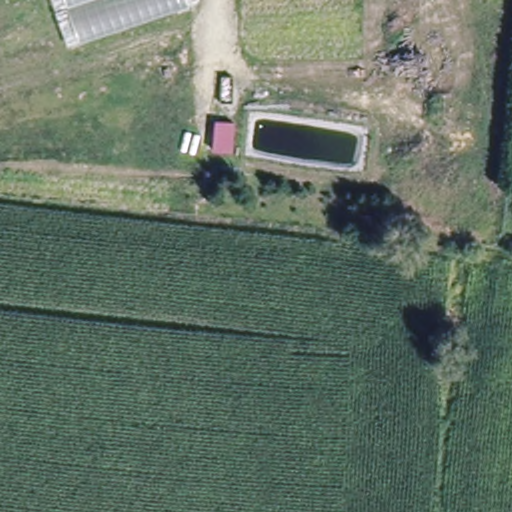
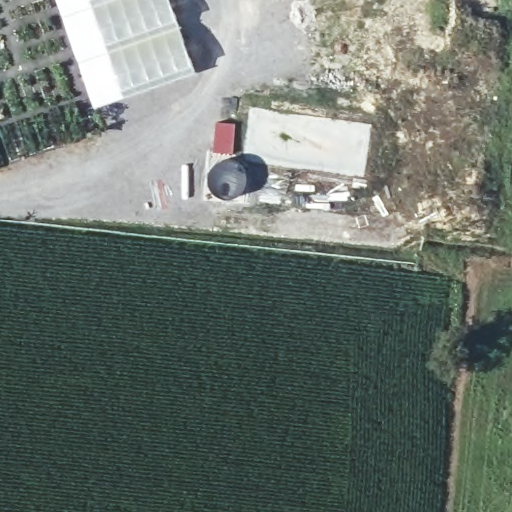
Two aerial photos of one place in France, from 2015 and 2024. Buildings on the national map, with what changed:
demolished [(202,7),(70,51),(52,0),(200,0),(202,7)]
new [(95,107),(58,0),(170,0),(196,72),(95,107)]

